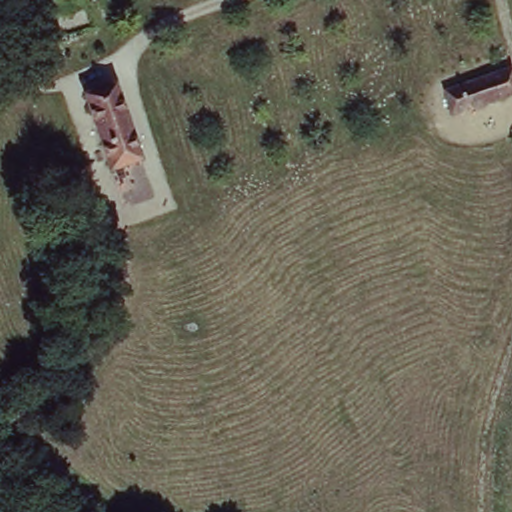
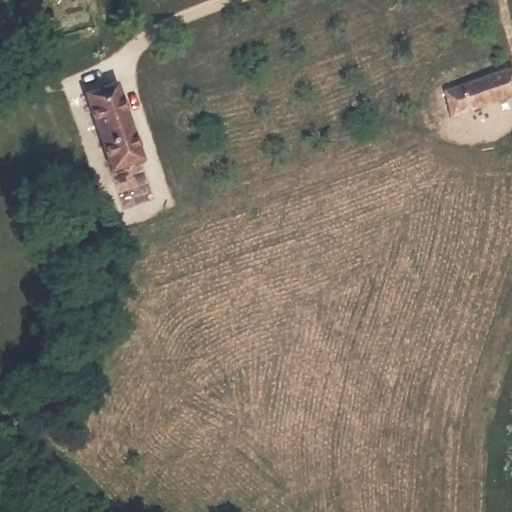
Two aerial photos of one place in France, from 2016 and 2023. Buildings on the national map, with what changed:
unchanged [(512,94),(451,109),(444,86),(512,69),(512,94)]
unchanged [(117,81),(145,160),(111,171),(83,96),(117,81)]

